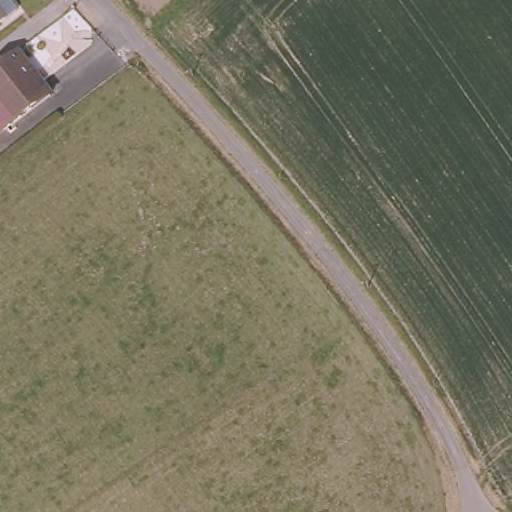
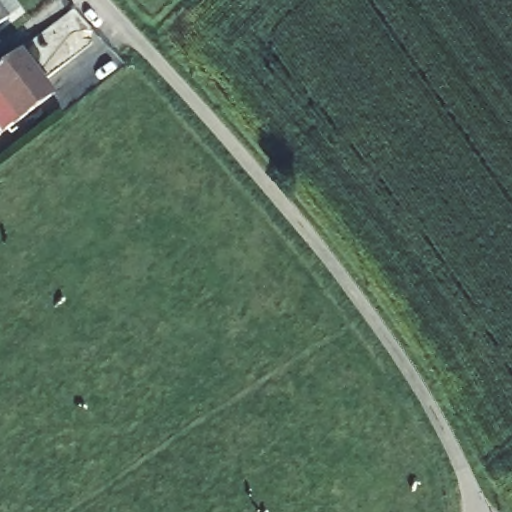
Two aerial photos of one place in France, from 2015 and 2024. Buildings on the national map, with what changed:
unchanged [(10,132),(0,120),(0,63),(20,47),(55,96),(10,132)]

